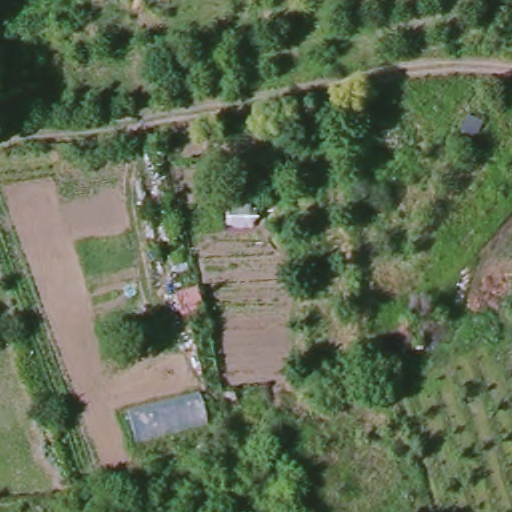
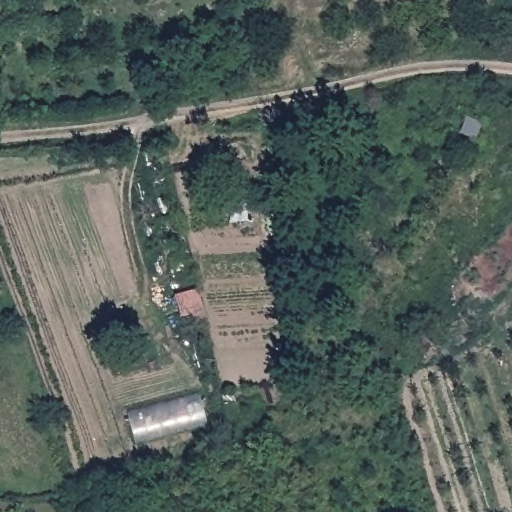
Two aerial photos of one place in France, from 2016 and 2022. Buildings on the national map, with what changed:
unchanged [(190,57),(189,91),(175,91),(177,57),(190,57)]

